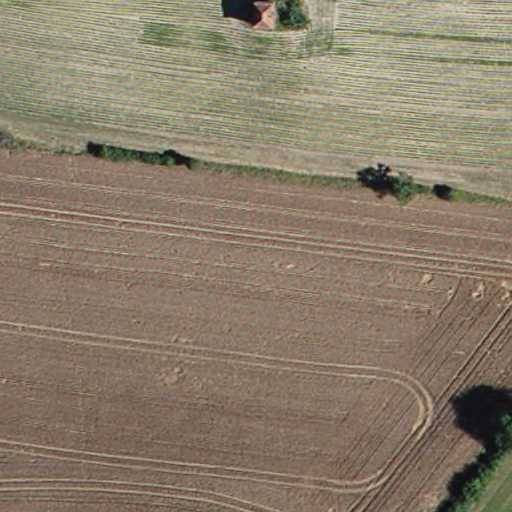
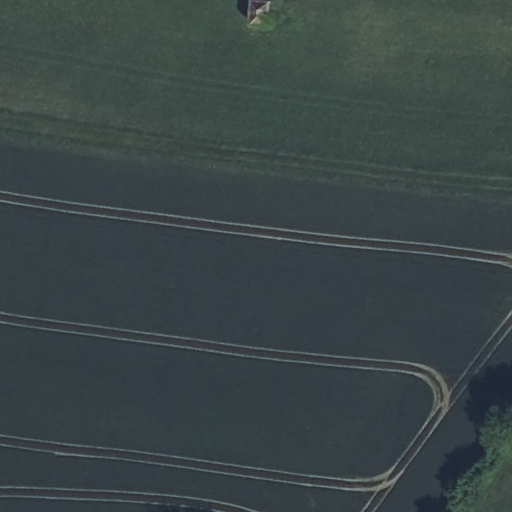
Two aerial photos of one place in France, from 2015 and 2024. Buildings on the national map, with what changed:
unchanged [(276,28),(249,26),(251,0),(277,0),(276,28)]

